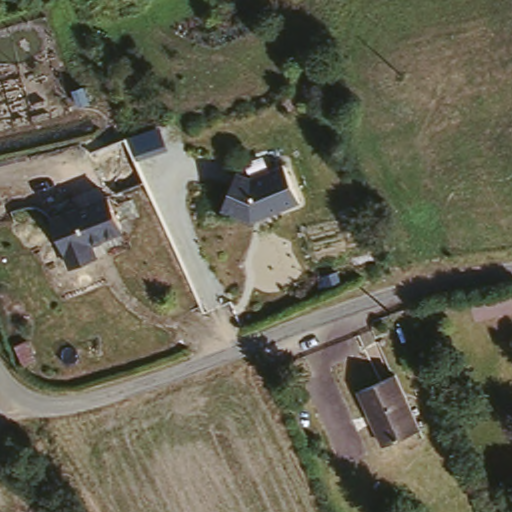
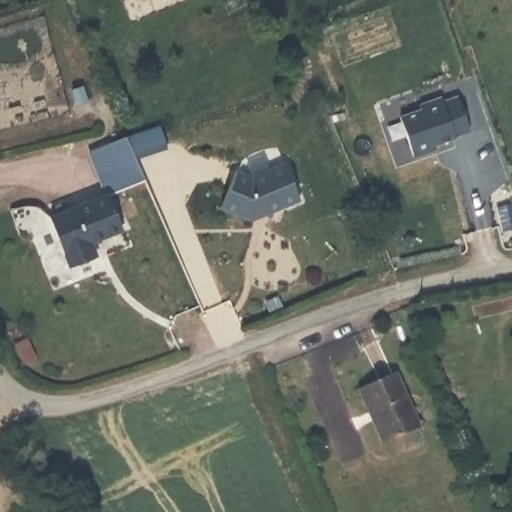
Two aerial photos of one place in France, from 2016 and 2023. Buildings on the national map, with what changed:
new [(401,114),(422,108),(420,103),(442,97),(443,101),(457,96),(470,133),(436,145),(437,149),(416,156),(401,114)]
new [(168,148),(135,156),(144,180),(109,194),(90,151),(125,136),(162,124),(168,148)]
unchanged [(251,178),(287,162),(299,200),(251,222),(225,209),(236,172),(251,178)]
unchanged [(109,194),(121,233),(90,246),(94,257),(69,267),(52,215),(109,194)]
unchanged [(401,368),(426,418),(384,437),(357,387),(401,368)]

